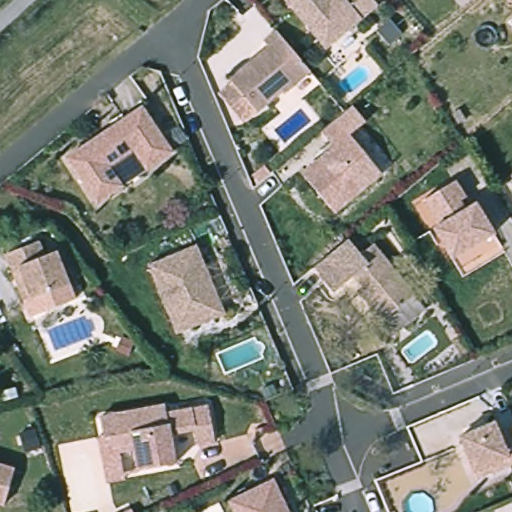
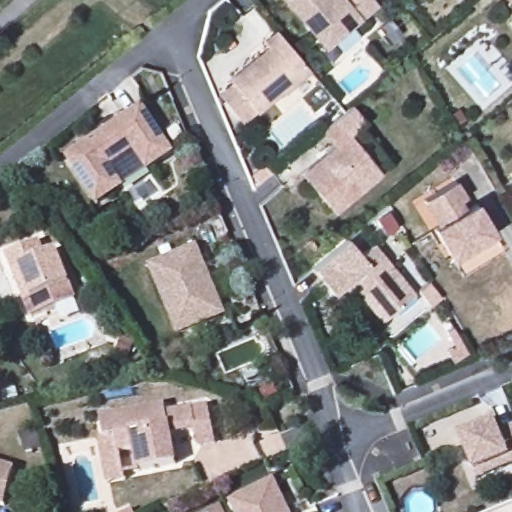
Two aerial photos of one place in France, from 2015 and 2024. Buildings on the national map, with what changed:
unchanged [(286,0),(374,0),(379,6),(335,42),(327,49),(315,34),(286,0)]
unchanged [(512,0),(512,3),(510,0),(512,0)]
unchanged [(264,42),(277,31),(311,72),(284,94),(283,92),(257,112),(230,80),(259,55),(265,50),(269,47),(264,42)]
unchanged [(135,144),(109,162),(123,182),(98,199),(68,153),(143,102),(173,147),(149,165),(135,144)]
unchanged [(303,169),(335,142),(322,127),(345,108),(353,102),(367,118),(362,122),(395,160),(383,170),(336,209),(303,169)]
unchanged [(435,229),(446,222),(441,212),(435,216),(425,200),(457,181),(467,198),(460,202),(468,216),(480,209),(491,229),(494,235),(482,242),(465,252),(453,258),(450,254),(435,229)]
unchanged [(373,304),(358,287),(363,283),(354,272),(333,290),(313,265),(348,236),(361,251),(373,241),(415,291),(395,307),(383,317),(373,304)]
unchanged [(22,271),(15,255),(48,242),(54,257),(66,252),(78,285),(41,300),(34,302),(22,271)]
unchanged [(146,266),(196,242),(227,312),(179,337),(146,266)]
unchanged [(117,451),(114,433),(102,435),(99,415),(164,406),(165,414),(207,408),(213,445),(196,447),(194,431),(168,434),(173,465),(136,470),(120,472),(117,451)]
unchanged [(459,437),(494,422),(498,433),(512,427),(512,464),(511,465),(477,479),(474,472),(459,437)]
unchanged [(15,464),(4,501),(0,499),(0,460),(15,464)]
unchanged [(229,497),(265,481),(273,477),(286,505),(289,512),(235,512),(229,497)]

